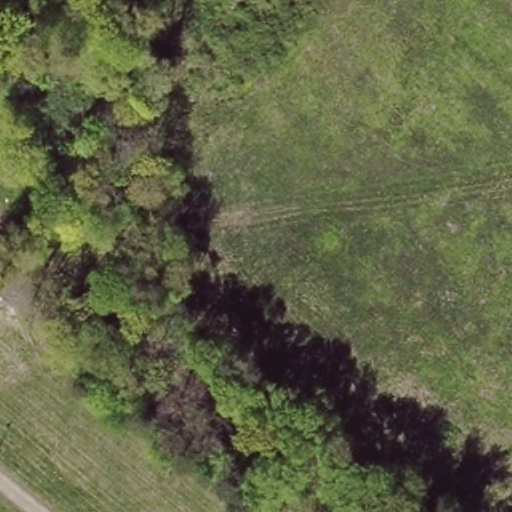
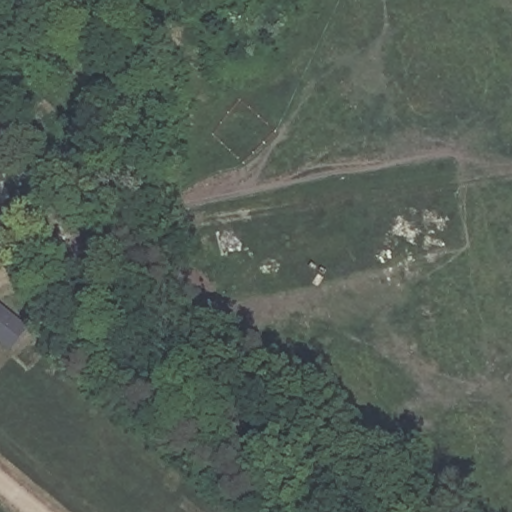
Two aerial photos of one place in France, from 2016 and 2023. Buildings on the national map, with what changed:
new [(10,350),(0,343),(0,305),(28,327),(10,350)]

